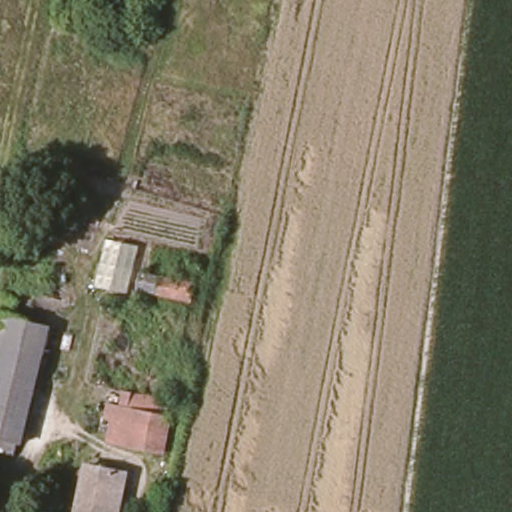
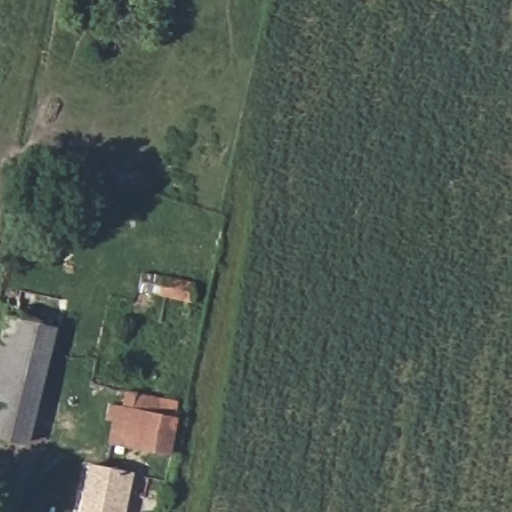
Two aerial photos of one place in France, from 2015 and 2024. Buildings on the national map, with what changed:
unchanged [(48,322),(35,384),(0,376),(0,314),(1,312),(48,322)]
unchanged [(23,441),(0,436),(0,376),(35,384),(23,441)]
unchanged [(170,447),(116,437),(119,412),(111,410),(113,398),(177,410),(170,447)]
unchanged [(131,474),(124,512),(83,512),(91,467),(131,474)]

